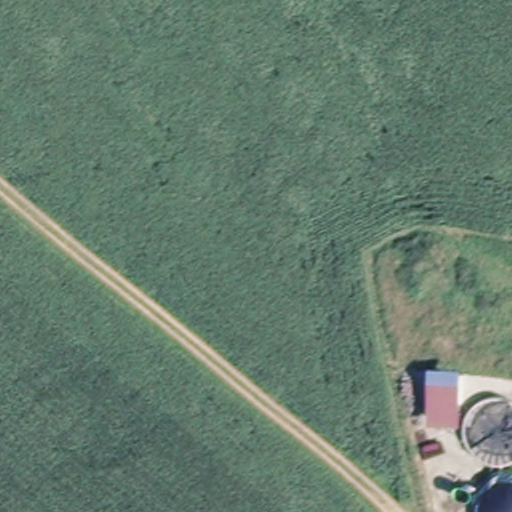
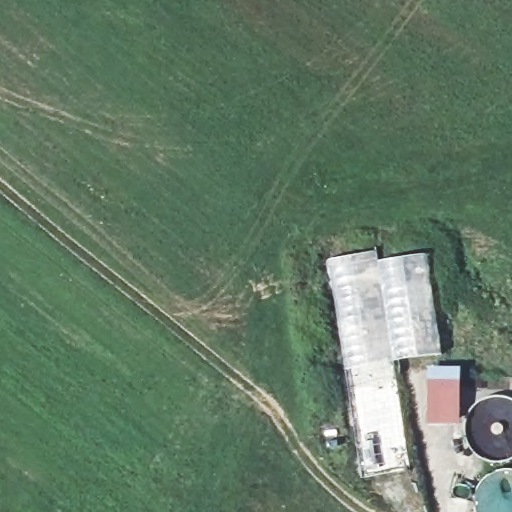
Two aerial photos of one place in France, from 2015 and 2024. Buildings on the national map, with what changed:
new [(327,258),(377,250),(378,260),(426,254),(442,354),(394,361),(411,470),(361,477),(327,258)]
new [(428,367),(460,368),(459,424),(427,423),(428,367)]

